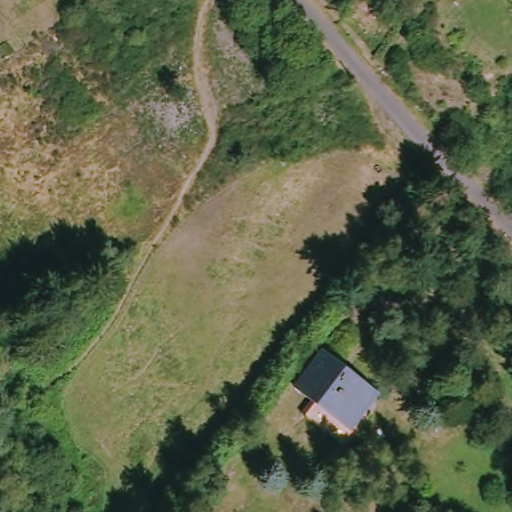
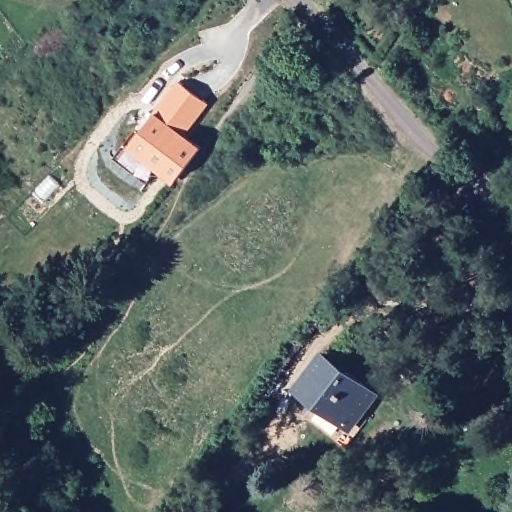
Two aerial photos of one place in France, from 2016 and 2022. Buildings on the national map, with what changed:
new [(131,147),(156,112),(155,111),(178,80),(209,102),(186,135),(202,147),(176,180),(131,147)]
unchanged [(341,445),(301,413),(313,398),(301,388),(328,353),(371,387),(354,410),(361,417),(341,445)]

